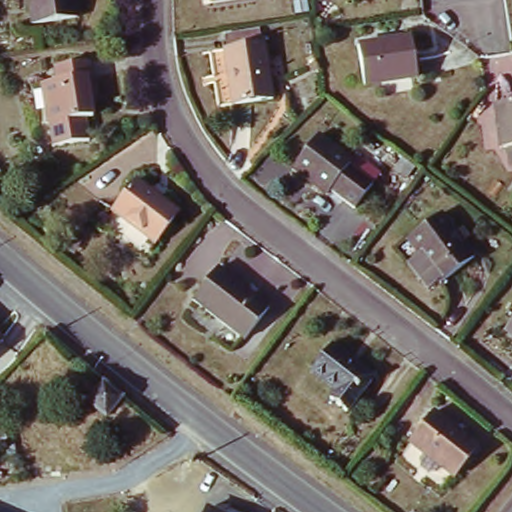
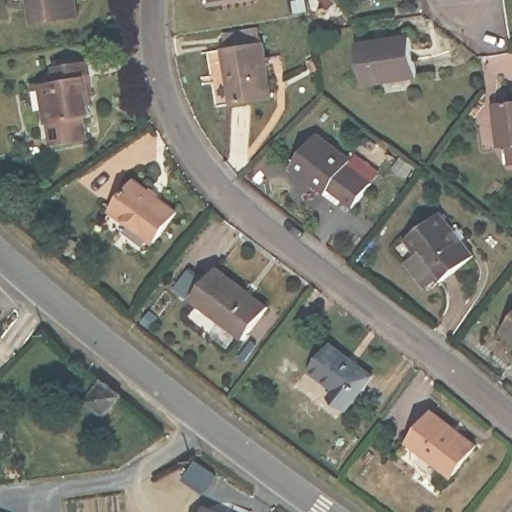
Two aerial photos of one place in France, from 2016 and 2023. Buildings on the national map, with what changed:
unchanged [(82,17),(36,24),(32,0),(79,0),(82,17)]
unchanged [(217,4),(216,0),(236,0),(217,4)]
unchanged [(410,42),(416,81),(362,89),(357,50),(410,42)]
unchanged [(267,45),(277,99),(236,105),(227,51),(267,45)]
unchanged [(66,84),(62,69),(97,63),(103,98),(98,98),(101,118),(59,125),(52,86),(66,84)]
unchanged [(501,149),(496,106),(512,103),(512,164),(510,148),(501,149)]
unchanged [(330,200),(297,175),(324,139),(357,165),(381,182),(375,190),(358,212),(345,201),(339,207),(330,200)]
unchanged [(181,218),(159,248),(116,214),(138,184),(181,218)]
unchanged [(440,218),(473,262),(438,287),(406,244),(440,218)]
unchanged [(272,307),(248,344),(196,308),(220,271),(272,307)]
unchanged [(11,338),(0,349),(0,328),(11,338)]
unchanged [(512,334),(510,333),(512,329),(512,334)]
unchanged [(373,381),(345,413),(328,399),(334,392),(311,370),(333,344),(373,381)]
unchanged [(106,415),(87,400),(102,381),(121,397),(106,415)]
unchanged [(477,451),(453,482),(409,448),(435,417),(477,451)]
unchanged [(217,512),(210,512),(212,510),(217,512)]

